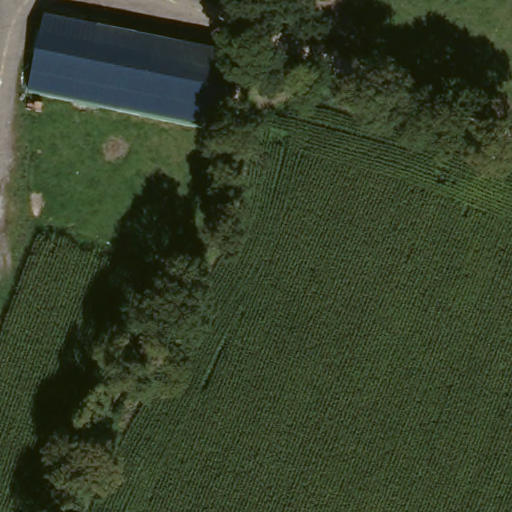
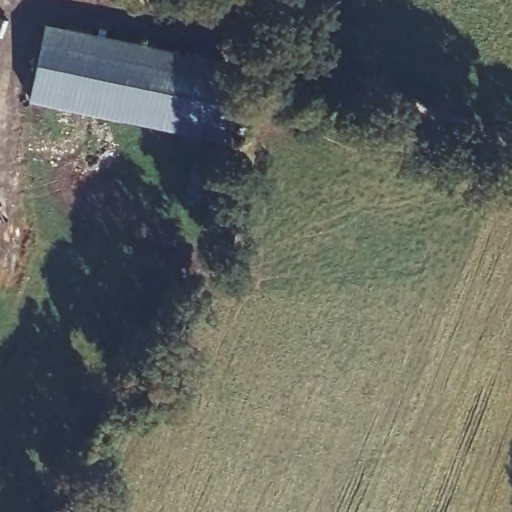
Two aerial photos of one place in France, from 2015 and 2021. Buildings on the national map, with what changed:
unchanged [(245,58),(230,136),(30,95),(47,18),(245,58)]

